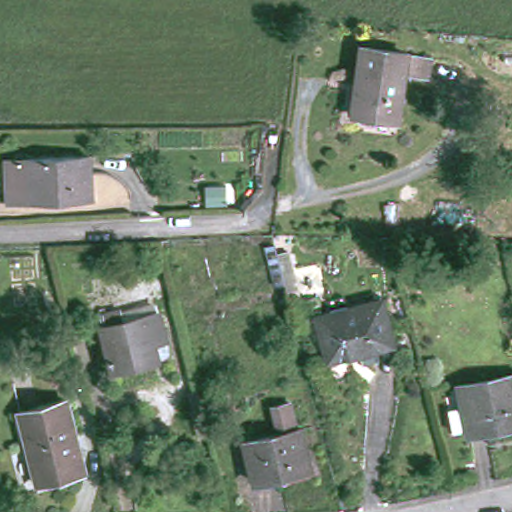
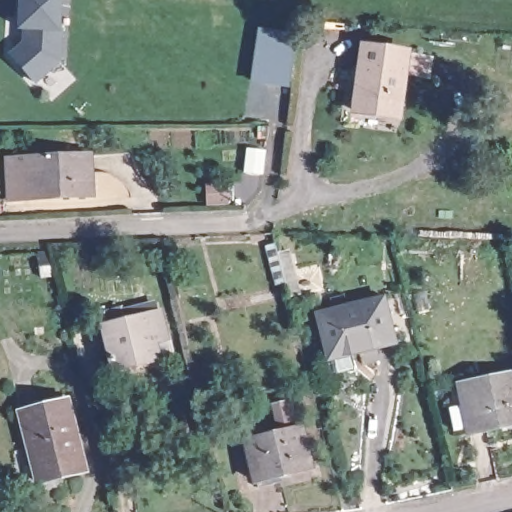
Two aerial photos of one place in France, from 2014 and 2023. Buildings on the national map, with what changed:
new [(63,2),(63,33),(61,61),(34,85),(9,54),(22,45),(22,32),(18,32),(19,0),(72,0),(72,1),(63,2)]
new [(296,33),(290,88),(251,82),(259,28),(296,33)]
unchanged [(410,69),(403,114),(360,107),(369,41),(438,51),(435,73),(410,69)]
unchanged [(10,202),(9,160),(91,156),(93,198),(10,202)]
unchanged [(384,299),(395,344),(360,353),(358,349),(330,356),(319,316),(384,299)]
unchanged [(158,359),(158,361),(114,371),(104,328),(101,315),(121,310),(124,323),(159,315),(166,340),(170,356),(158,359)]
unchanged [(460,426),(455,404),(470,401),(466,381),(512,373),(512,421),(475,428),(474,423),(460,426)]
unchanged [(303,425),(307,424),(317,464),(260,478),(251,438),(285,429),(279,402),(297,398),(303,425)]
unchanged [(74,438),(83,472),(38,484),(20,414),(68,402),(77,437),(74,438)]

